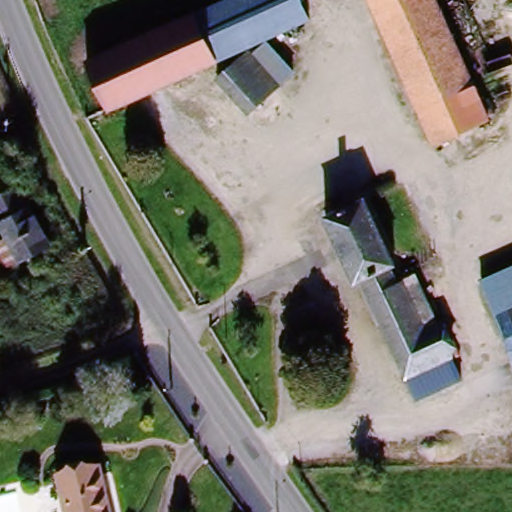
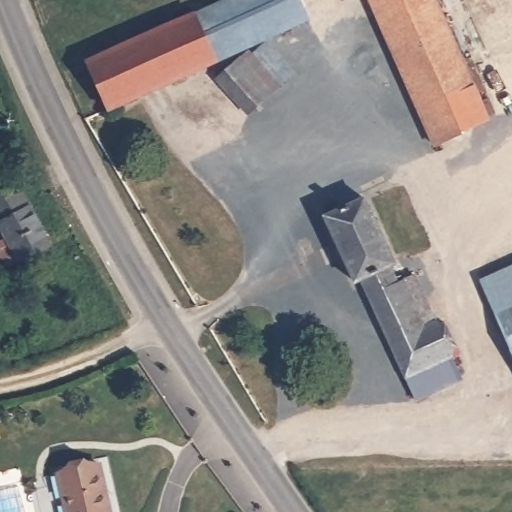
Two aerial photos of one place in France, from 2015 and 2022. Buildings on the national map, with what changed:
unchanged [(285,0),(290,10),(238,38),(218,2),(222,0),(285,0)]
unchanged [(446,139),(376,0),(440,0),(496,114),(446,139)]
unchanged [(106,110),(86,74),(218,2),(238,38),(106,110)]
unchanged [(266,36),(292,66),(275,80),(262,90),(234,60),(248,50),(266,36)]
unchanged [(243,108),(215,79),(234,60),(262,90),(243,108)]
unchanged [(0,251),(0,243),(7,240),(0,224),(0,198),(23,186),(33,206),(53,245),(20,262),(8,267),(0,251)]
unchanged [(355,287),(323,220),(367,199),(402,267),(391,274),(399,286),(415,280),(436,327),(443,324),(460,357),(452,361),(462,382),(414,407),(355,287)]
unchanged [(512,351),(480,280),(512,266),(512,351)]
unchanged [(111,512),(67,512),(56,470),(98,460),(111,512)]

